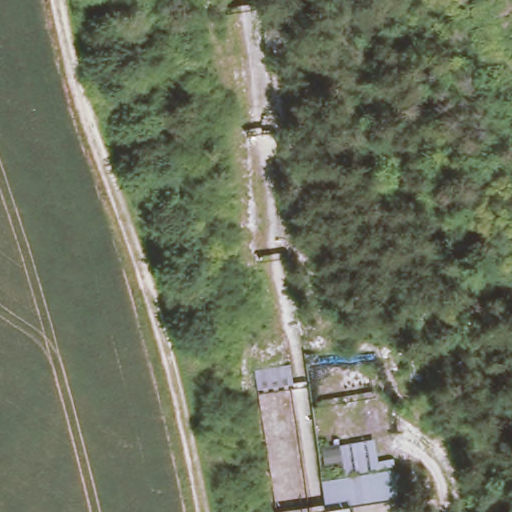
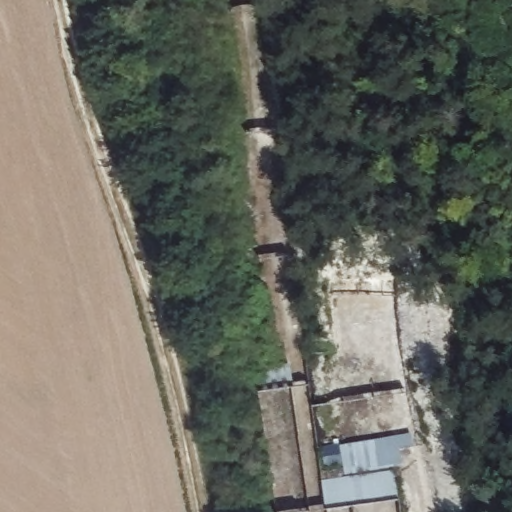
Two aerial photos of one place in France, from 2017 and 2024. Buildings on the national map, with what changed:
unchanged [(320,450),(342,447),(345,465),(387,461),(389,467),(398,464),(400,498),(329,509),(320,450)]

